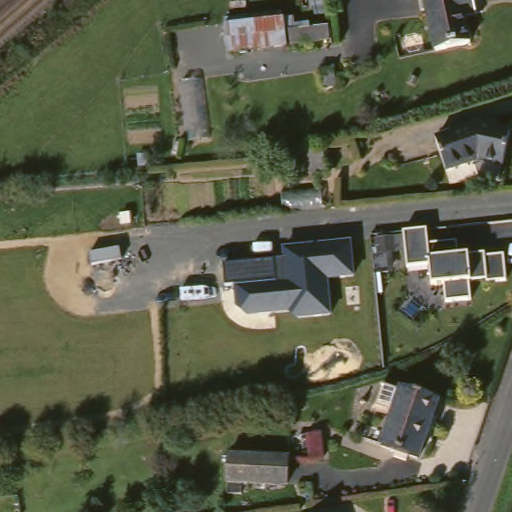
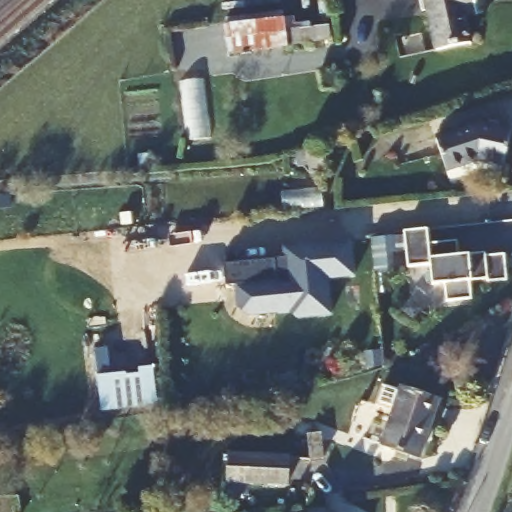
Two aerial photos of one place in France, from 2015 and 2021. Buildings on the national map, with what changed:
unchanged [(481,0),(483,18),(472,18),(475,42),(438,46),(433,0),(481,0)]
unchanged [(296,16),(295,29),(334,25),(337,42),(234,55),(231,22),(296,16)]
unchanged [(512,165),(483,159),(453,168),(443,140),(488,128),(512,133),(512,165)]
unchanged [(316,166),(311,134),(323,132),(329,131),(335,165),(316,166)]
unchanged [(447,242),(475,239),(477,254),(485,254),(503,252),(506,279),(488,280),(490,298),(465,300),(463,282),(450,283),(448,263),(426,265),(424,248),(411,249),(413,269),(395,271),(390,233),(422,230),(422,229),(445,227),(447,242)]
unchanged [(299,320),(292,313),(248,316),(236,305),(234,285),(227,285),(224,263),(283,258),(282,248),(350,241),(354,278),(328,280),(331,316),(299,320)]
new [(124,372),(125,377),(136,375),(136,368),(154,367),(159,406),(101,412),(96,377),(124,372)]
unchanged [(429,458),(393,446),(404,412),(387,406),(395,385),(414,393),(416,388),(449,401),(429,458)]
unchanged [(342,446),(330,445),(331,422),(344,423),(342,446)]
unchanged [(294,482),(231,479),(232,456),(294,460),(294,482)]

